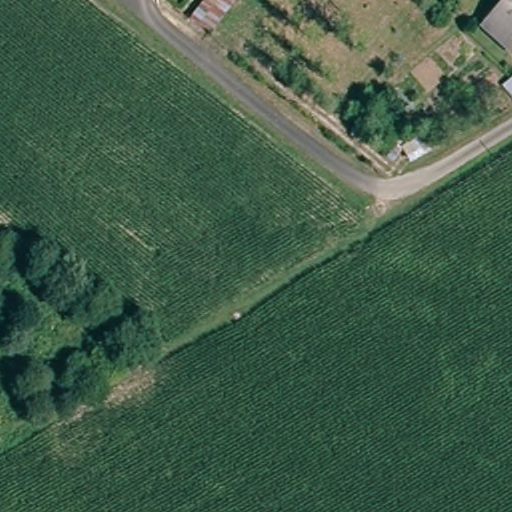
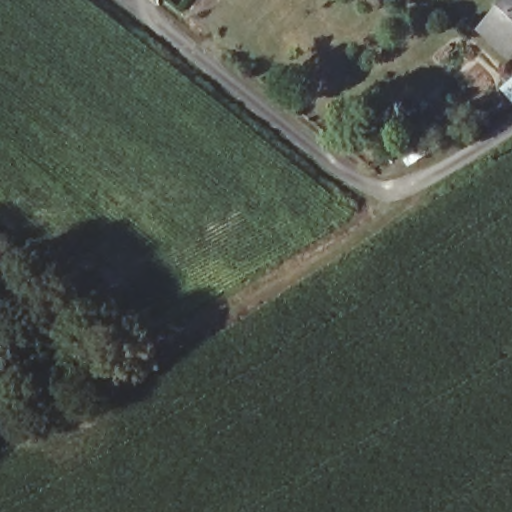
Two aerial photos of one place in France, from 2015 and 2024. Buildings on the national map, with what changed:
unchanged [(506,0),(512,0),(512,48),(509,51),(482,23),(506,0)]

